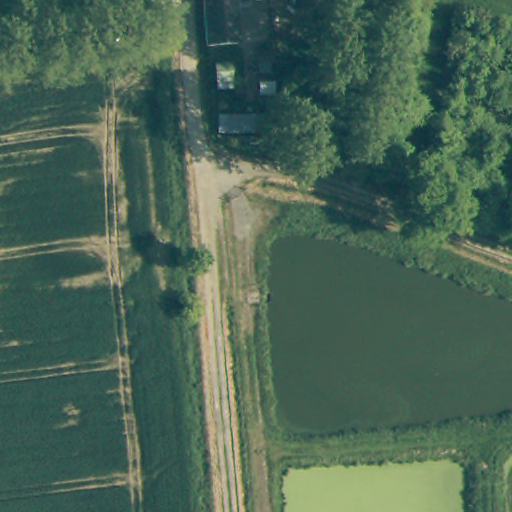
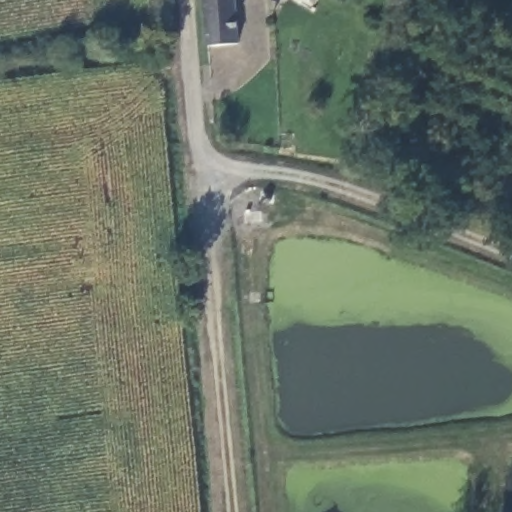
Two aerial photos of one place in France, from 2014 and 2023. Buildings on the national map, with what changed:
unchanged [(205,39),(203,0),(233,0),(235,27),(236,37),(236,46),(206,48),(205,39)]

